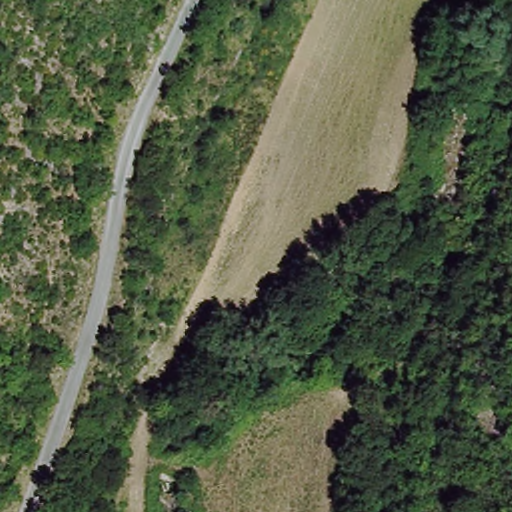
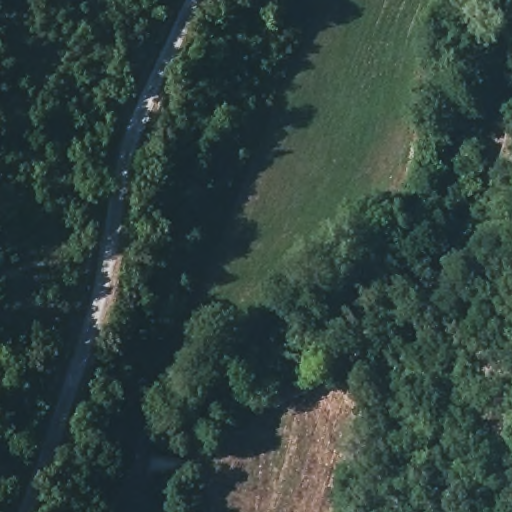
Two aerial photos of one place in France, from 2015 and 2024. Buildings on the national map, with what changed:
unchanged [(377,484),(357,474),(366,448),(385,456),(377,484)]

